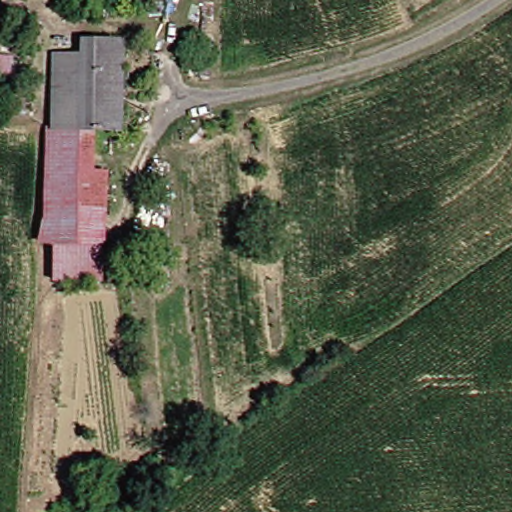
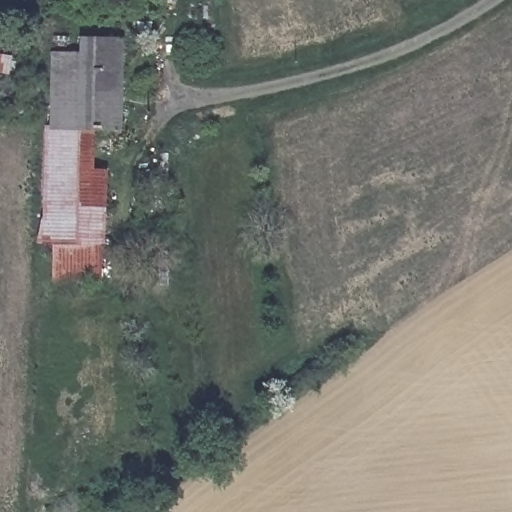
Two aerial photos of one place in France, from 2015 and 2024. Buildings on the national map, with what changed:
unchanged [(47,211),(40,210),(41,130),(48,130),(48,38),(114,40),(111,133),(85,133),(85,181),(105,184),(103,284),(46,280),(47,211)]

